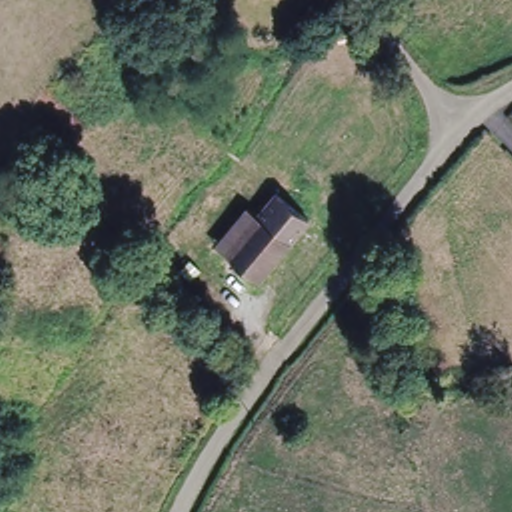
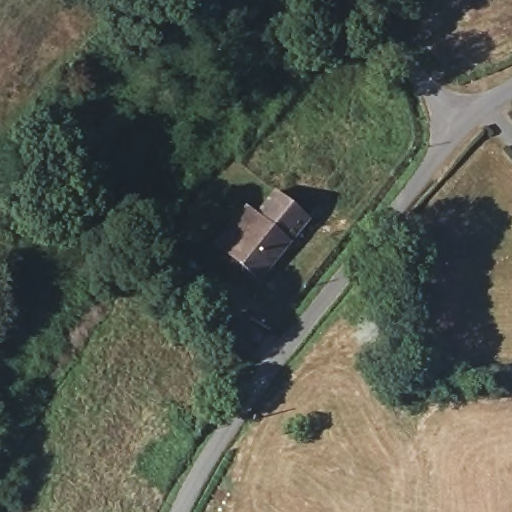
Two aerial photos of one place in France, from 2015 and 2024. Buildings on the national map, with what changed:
unchanged [(224,274),(227,269),(220,263),(209,255),(241,218),(251,227),(269,203),(303,230),(254,291),(237,277),(233,281),(224,274)]
unchanged [(193,260),(206,271),(196,280),(184,270),(193,260)]

